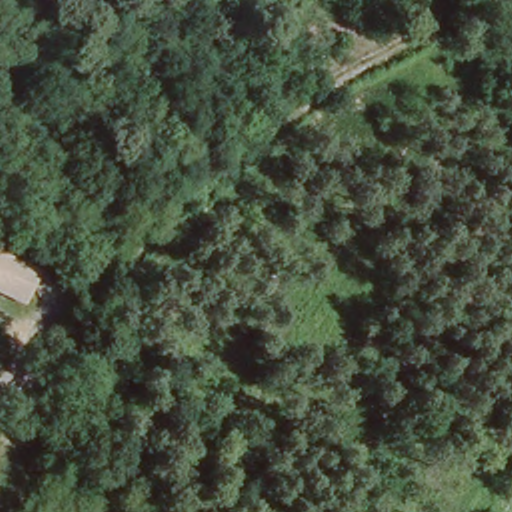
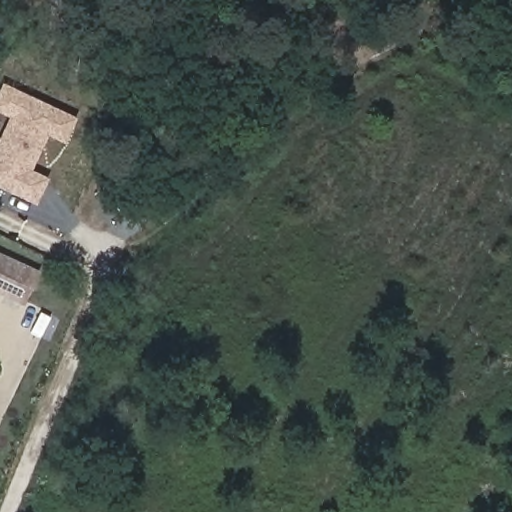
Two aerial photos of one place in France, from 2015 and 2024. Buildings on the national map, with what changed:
new [(0,188),(0,137),(10,118),(0,114),(0,91),(3,84),(77,117),(66,144),(48,135),(30,171),(51,179),(37,206),(0,188)]
unchanged [(0,296),(0,251),(42,270),(24,306),(0,296)]

